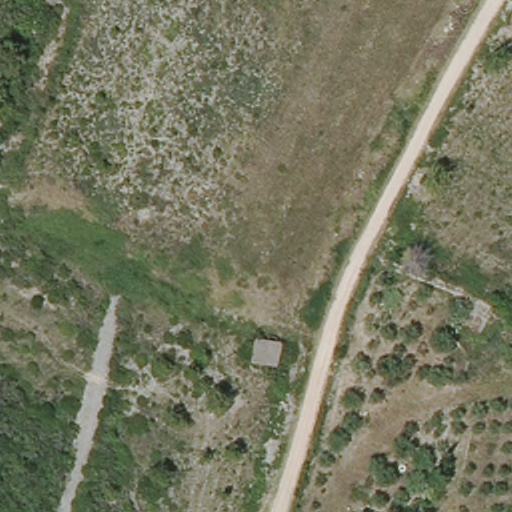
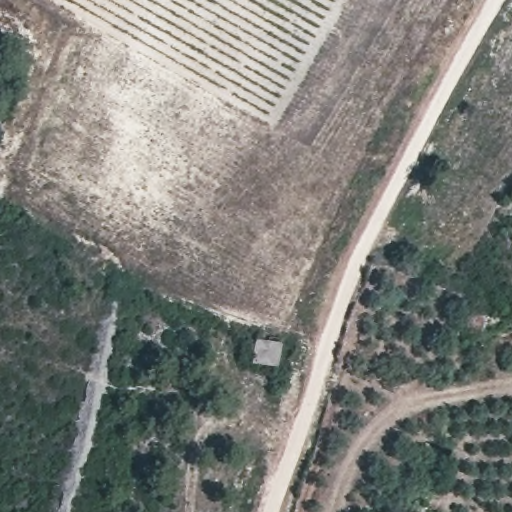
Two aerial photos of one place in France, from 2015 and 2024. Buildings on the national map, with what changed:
unchanged [(474,317),(490,324),(485,335),(469,327),(474,317)]
unchanged [(252,336),(281,338),(278,364),(251,361),(252,336)]

